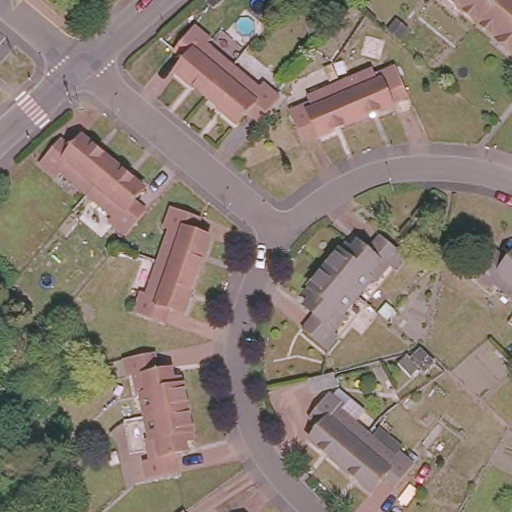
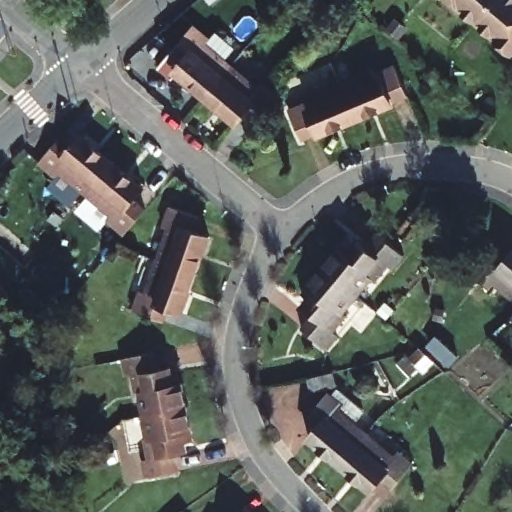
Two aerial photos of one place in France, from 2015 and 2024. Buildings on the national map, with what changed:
unchanged [(454,0),(488,0),(474,17),(454,0)]
unchanged [(509,46),(508,47),(493,35),(494,34),(474,17),(488,0),(490,0),(499,7),(512,19),(512,48),(509,46)]
unchanged [(499,7),(490,0),(512,0),(512,19),(499,7)]
unchanged [(196,99),(166,74),(173,63),(161,53),(183,28),(199,42),(196,46),(211,60),(221,69),(196,99)]
unchanged [(196,99),(221,69),(249,91),(253,86),(270,100),(248,125),(236,115),(228,126),(196,99)]
unchanged [(371,78),(393,69),(405,99),(389,105),(391,107),(354,123),(353,121),(337,85),(368,71),(371,78)]
unchanged [(316,140),(314,138),(299,145),(286,115),(306,106),(303,99),(337,85),(353,121),(354,123),(316,140)]
unchanged [(86,189),(58,166),(55,170),(38,156),(58,132),(71,142),(80,130),(113,157),(86,189)]
unchanged [(109,215),(113,210),(86,189),(113,157),(143,182),(133,194),(144,204),(146,205),(126,229),(124,227),(109,215)]
unchanged [(171,262),(163,259),(174,227),(168,225),(176,203),(207,215),(201,229),(214,235),(201,273),(171,262)]
unchanged [(336,244),(341,239),(346,242),(353,235),(364,244),(376,228),(401,249),(389,262),(384,258),(371,273),(368,271),(353,290),(323,263),(321,262),(336,244)]
unchanged [(497,272),(494,277),(476,263),(497,239),(508,248),(512,243),(512,285),(497,272)]
unchanged [(138,310),(145,289),(151,291),(163,259),(171,262),(201,273),(188,310),(174,305),(168,321),(138,310)]
unchanged [(309,307),(300,298),(304,292),(299,288),(305,282),(321,262),(323,263),(353,290),(339,306),(343,309),(329,325),(334,329),(323,342),(298,322),(309,307)]
unchanged [(161,368),(172,366),(173,375),(181,374),(187,407),(146,414),(143,391),(139,392),(136,371),(129,372),(126,355),(144,352),(157,350),(157,351),(161,368)]
unchanged [(326,453),(321,460),(289,434),(299,421),(289,412),(309,387),(324,400),(321,405),(348,428),(326,453)]
unchanged [(144,458),(151,457),(148,436),(151,436),(146,414),(187,407),(193,437),(186,438),(187,448),(175,450),(179,470),(148,475),(144,458)]
unchanged [(374,483),(361,473),(351,485),(321,460),(326,453),(348,428),(375,451),(379,446),(394,458),(374,483)]
unchanged [(408,448),(419,456),(401,478),(390,469),(408,448)]
unchanged [(186,512),(182,512),(184,510),(186,512)]

